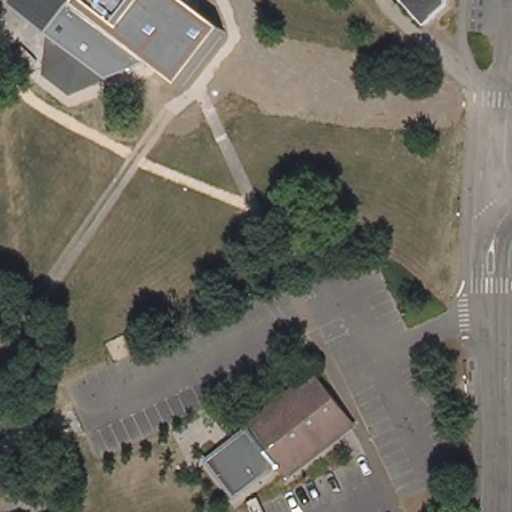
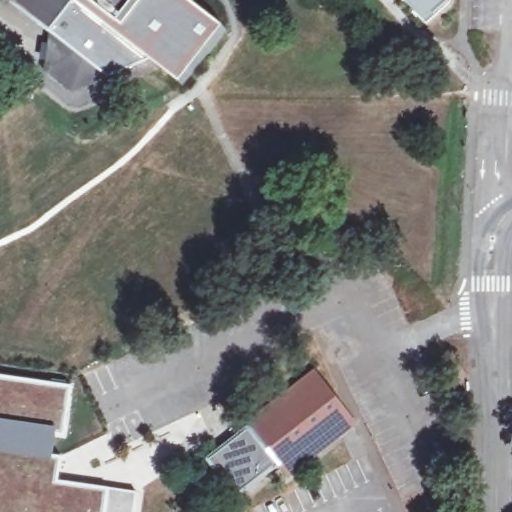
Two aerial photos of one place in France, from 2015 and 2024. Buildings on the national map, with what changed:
unchanged [(164,51),(72,91),(45,71),(49,29),(18,5),(12,1),(13,0),(194,0),(193,12),(164,51)]
unchanged [(424,25),(402,0),(449,0),(449,3),(424,25)]
unchanged [(199,457),(217,443),(220,442),(220,441),(312,370),(350,421),(282,472),(277,465),(272,468),(230,500),(202,462),(199,457)]
new [(65,433),(55,431),(51,456),(60,457),(55,481),(135,492),(132,512),(0,512),(0,377),(71,387),(65,433)]

